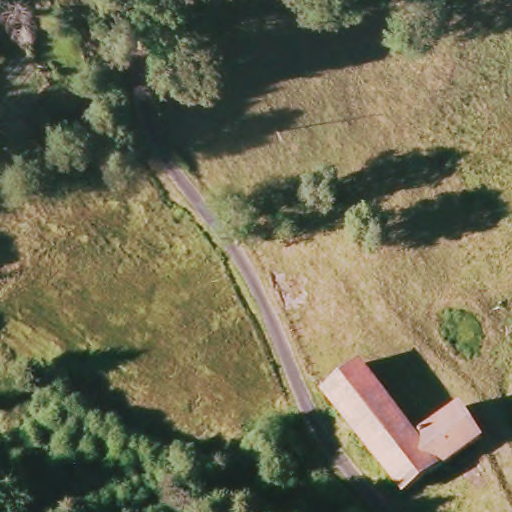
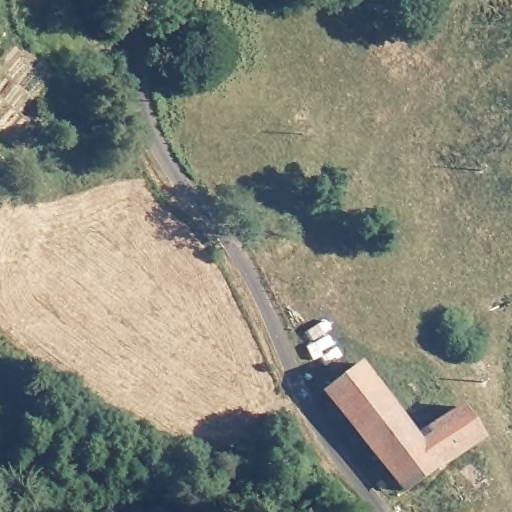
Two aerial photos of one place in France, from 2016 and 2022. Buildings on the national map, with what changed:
unchanged [(317,391),(320,390),(357,363),(414,436),(421,430),(418,427),(415,421),(422,418),(430,425),(453,407),(475,435),(400,493),(317,391)]

